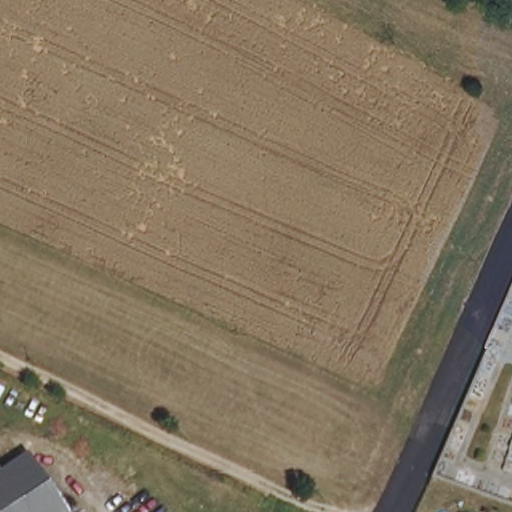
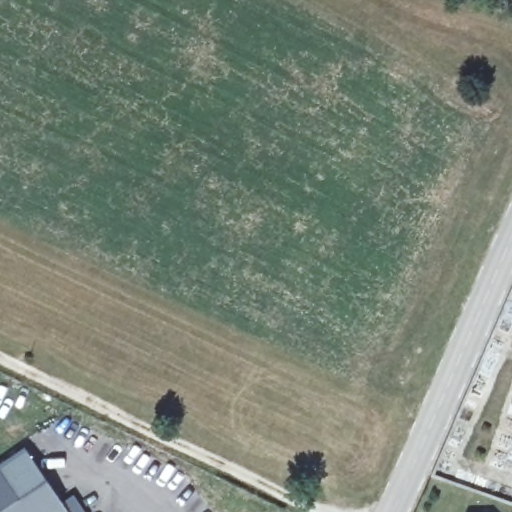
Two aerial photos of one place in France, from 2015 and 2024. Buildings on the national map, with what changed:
unchanged [(43,477),(15,496),(0,473),(0,462),(25,450),(43,477)]
unchanged [(0,473),(15,496),(43,477),(67,512),(0,512),(0,473)]

